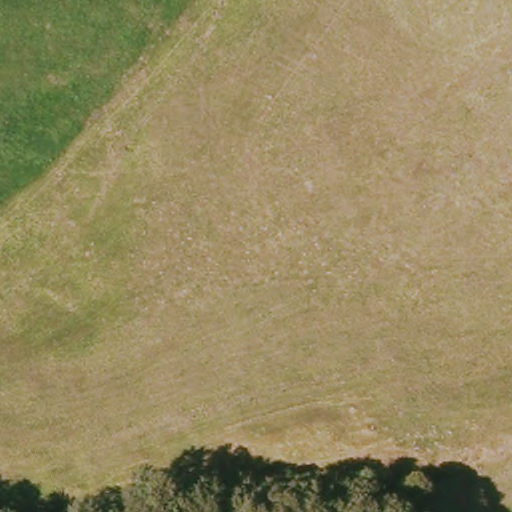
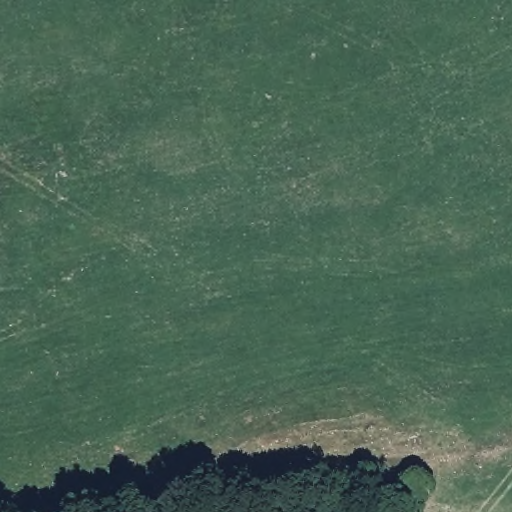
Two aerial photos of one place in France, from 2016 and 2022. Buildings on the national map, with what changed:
[]

